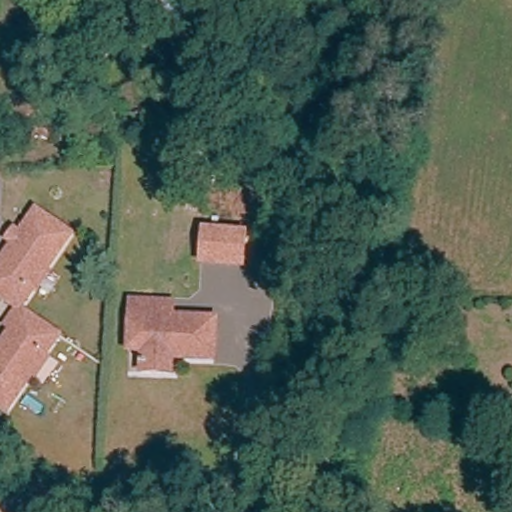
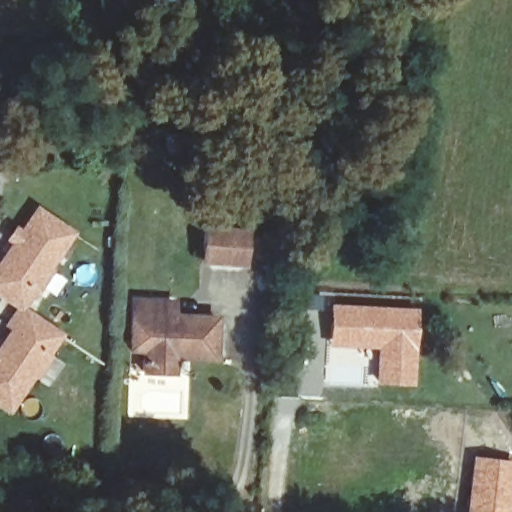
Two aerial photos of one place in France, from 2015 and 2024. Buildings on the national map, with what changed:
unchanged [(184,146),(164,149),(163,134),(183,133),(184,146)]
unchanged [(7,330),(20,314),(0,300),(0,273),(16,250),(11,246),(19,236),(24,240),(40,217),(75,241),(22,315),(59,342),(8,416),(0,411),(0,353),(13,335),(7,330)]
unchanged [(244,265),(204,263),(204,232),(244,234),(244,265)]
unchanged [(133,330),(134,298),(154,298),(175,299),(175,313),(219,314),(217,355),(176,353),(176,370),(144,368),(145,346),(133,345),(133,330)]
new [(329,302),(418,307),(414,387),(374,385),(376,350),(328,347),(329,302)]
new [(512,460),(512,492),(510,512),(463,512),(471,455),(512,460)]

